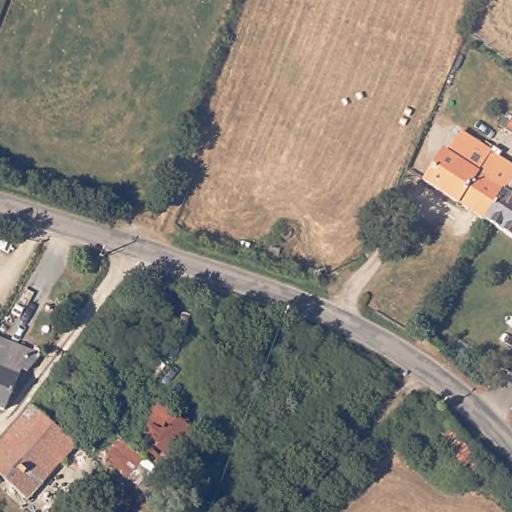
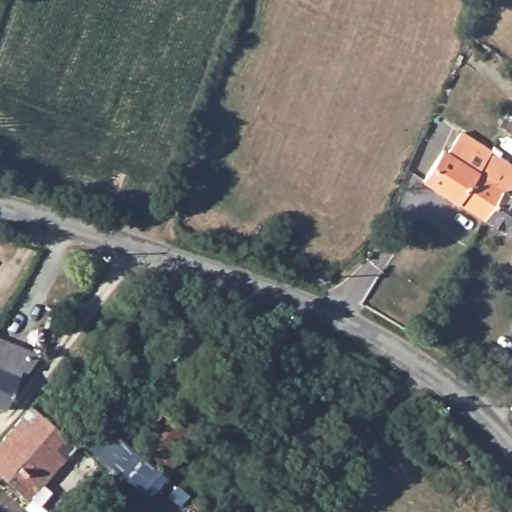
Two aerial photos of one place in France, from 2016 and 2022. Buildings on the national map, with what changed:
unchanged [(504,134),(512,120),(512,139),(504,134)]
unchanged [(447,160),(451,161),(465,140),(493,158),(498,154),(507,161),(503,166),(512,172),(512,199),(508,197),(490,227),(429,188),(447,160)]
unchanged [(508,197),(512,199),(512,240),(490,227),(508,197)]
unchanged [(28,369),(24,367),(9,403),(6,406),(0,404),(0,334),(43,352),(28,369)]
unchanged [(0,475),(0,448),(32,409),(78,449),(35,499),(0,475)]

